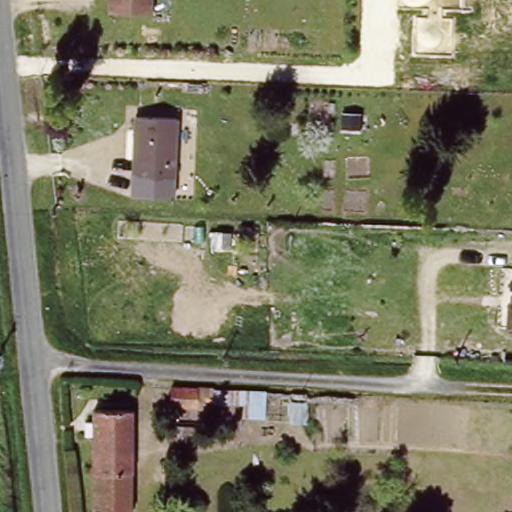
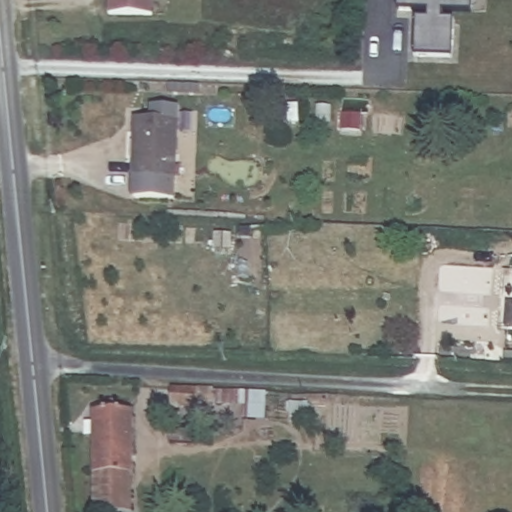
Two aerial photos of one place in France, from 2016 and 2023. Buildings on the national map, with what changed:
unchanged [(150,17),(105,16),(106,0),(150,0),(150,17)]
new [(415,56),(416,19),(430,20),(431,10),(400,10),(400,0),(473,0),(472,12),(443,11),(443,19),(455,20),(455,58),(415,56)]
unchanged [(178,113),(176,177),(139,176),(140,135),(131,135),(132,112),(178,113)]
unchanged [(506,332),(506,307),(512,307),(512,332),(506,332)]
unchanged [(188,388),(197,388),(211,388),(210,405),(196,405),(196,411),(166,410),(166,394),(188,394),(188,388)]
unchanged [(98,505),(97,479),(96,428),(89,428),(88,411),(96,411),(96,406),(133,406),(132,478),(133,505),(98,505)]

